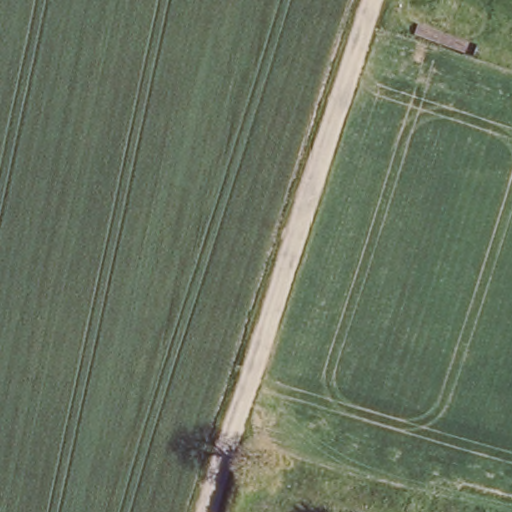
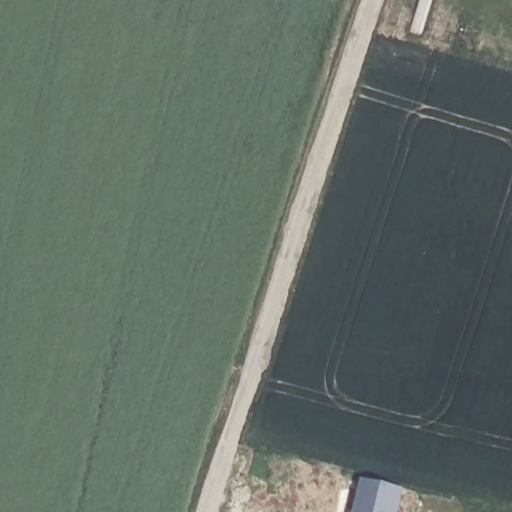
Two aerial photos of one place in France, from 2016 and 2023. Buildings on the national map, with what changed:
new [(362,479),(403,489),(397,512),(353,512),(362,479)]

